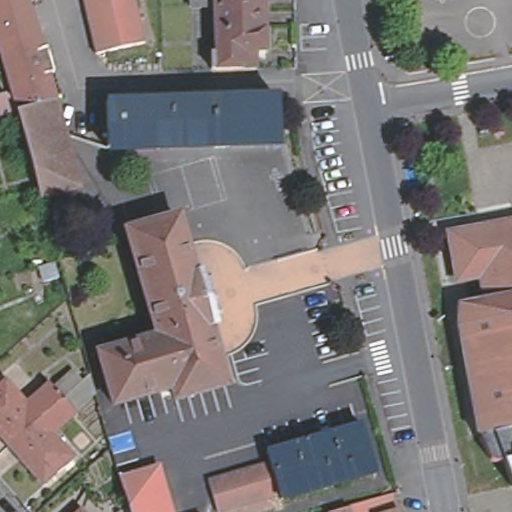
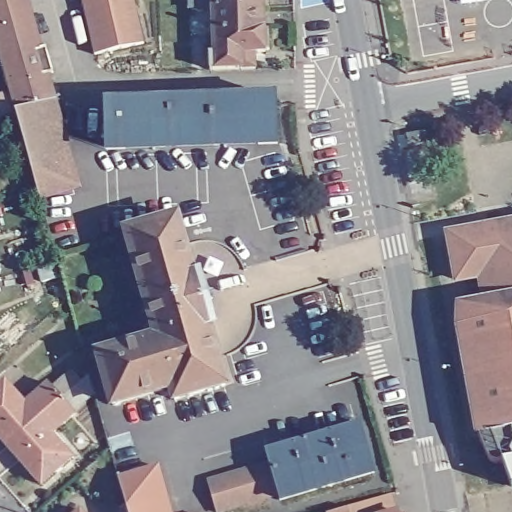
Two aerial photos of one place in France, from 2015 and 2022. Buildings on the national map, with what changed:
unchanged [(42,205),(37,187),(25,142),(23,137),(17,116),(17,112),(0,55),(0,0),(29,0),(57,101),(83,193),(42,205)]
unchanged [(143,43),(94,57),(81,0),(133,0),(143,43)]
unchanged [(268,32),(269,53),(265,53),(265,55),(255,55),(255,70),(210,72),(209,55),(214,55),(212,10),(190,10),(190,0),(263,0),(263,9),(264,32),(268,32)]
unchanged [(275,97),(277,144),(107,151),(105,104),(275,97)]
unchanged [(178,219),(194,278),(199,276),(214,327),(209,329),(202,305),(152,319),(127,234),(178,219)]
unchanged [(490,465),(481,442),(462,337),(462,316),(490,310),(485,283),(461,288),(448,242),(512,231),(512,469),(504,470),(503,471),(490,465)]
unchanged [(158,340),(152,319),(202,305),(209,329),(226,388),(176,402),(172,390),(114,407),(99,356),(158,340)]
unchanged [(49,440),(69,462),(36,491),(2,453),(0,451),(0,385),(22,410),(46,388),(59,403),(72,418),(49,440)]
unchanged [(361,418),(374,468),(332,479),(319,430),(361,418)]
unchanged [(223,470),(238,465),(254,461),(270,456),(266,443),(319,430),(332,479),(279,492),(278,487),(262,491),(246,495),(231,500),(217,503),(209,473),(223,470)]
unchanged [(512,469),(512,494),(504,470),(512,469)]
unchanged [(159,472),(170,512),(127,512),(119,482),(159,472)]
unchanged [(348,512),(337,512),(347,509),(348,512)]

